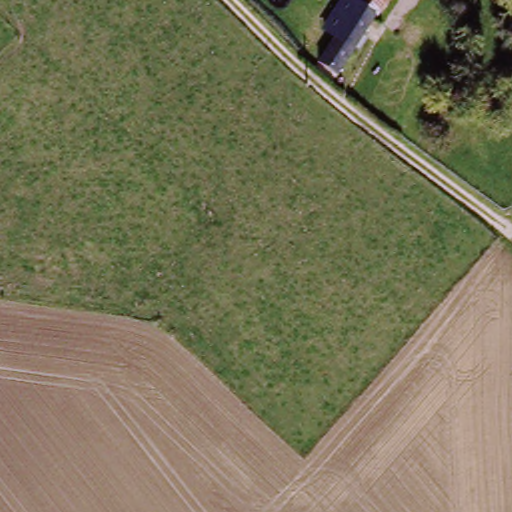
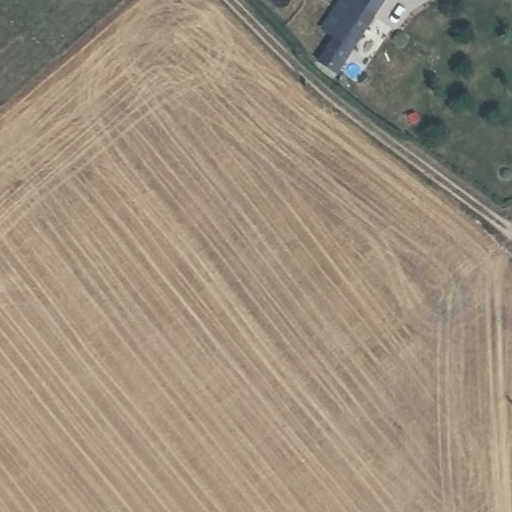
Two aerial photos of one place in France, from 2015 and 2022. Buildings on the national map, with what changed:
unchanged [(371,25),(339,79),(317,67),(333,40),(321,34),(342,0),(391,0),(371,25)]

